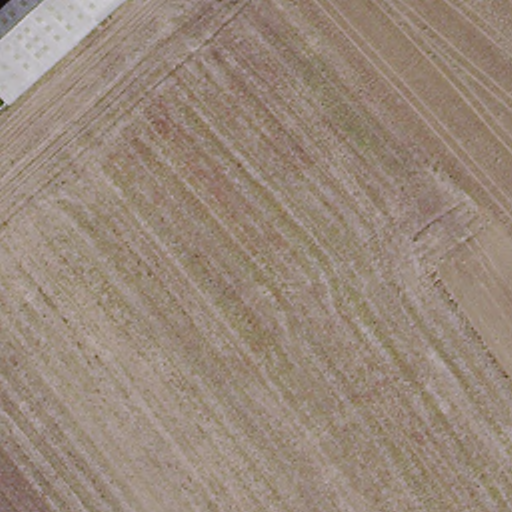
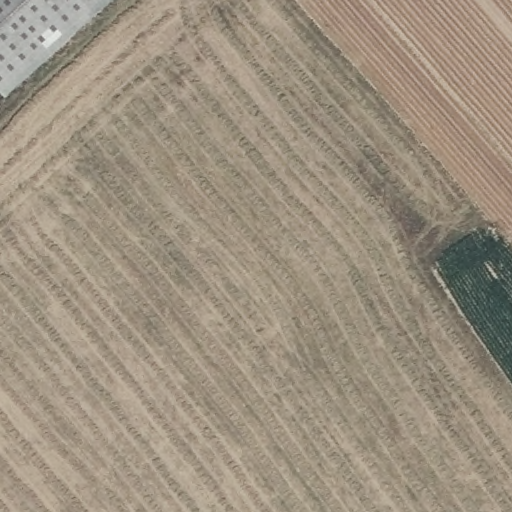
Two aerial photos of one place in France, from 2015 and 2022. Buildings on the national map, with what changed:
unchanged [(102,0),(2,90),(0,88),(0,20),(22,0),(102,0)]

